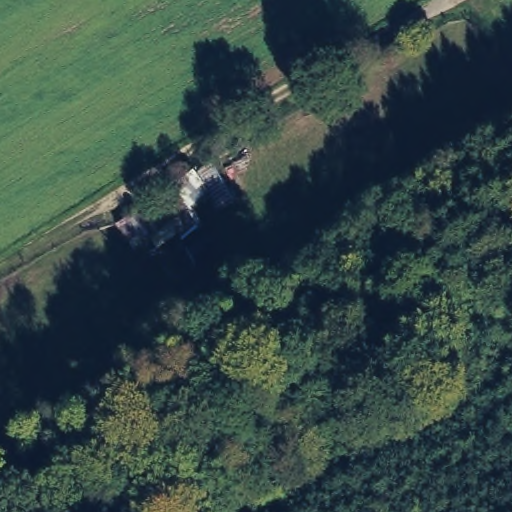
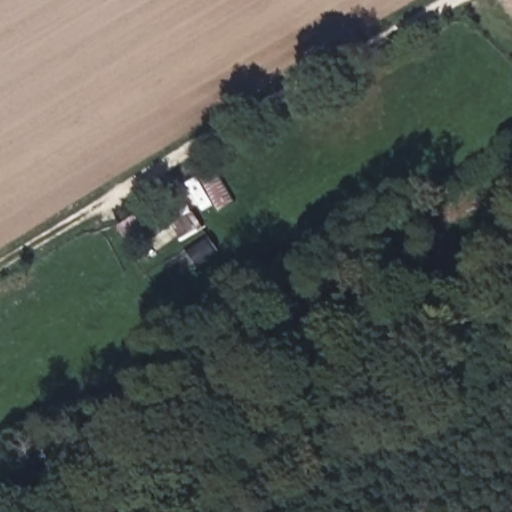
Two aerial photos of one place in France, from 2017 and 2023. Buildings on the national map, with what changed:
unchanged [(128,253),(113,221),(183,179),(195,209),(128,253)]

